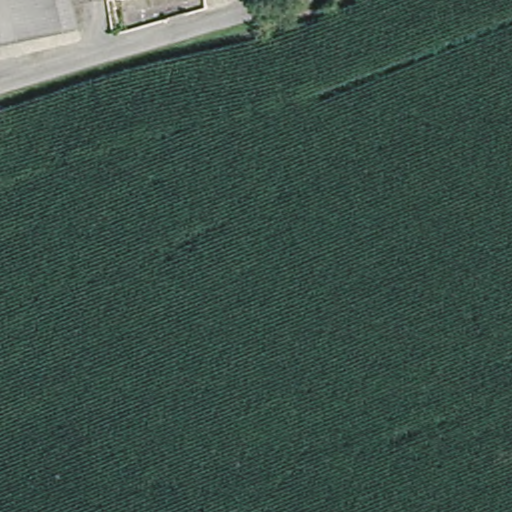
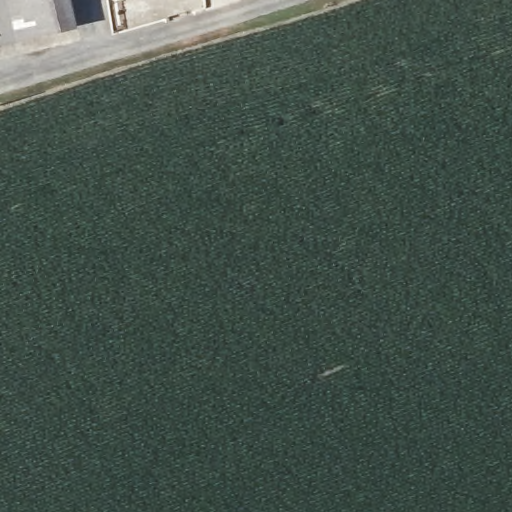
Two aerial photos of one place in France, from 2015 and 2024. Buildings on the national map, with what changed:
unchanged [(0,44),(0,0),(73,0),(80,27),(0,44)]

